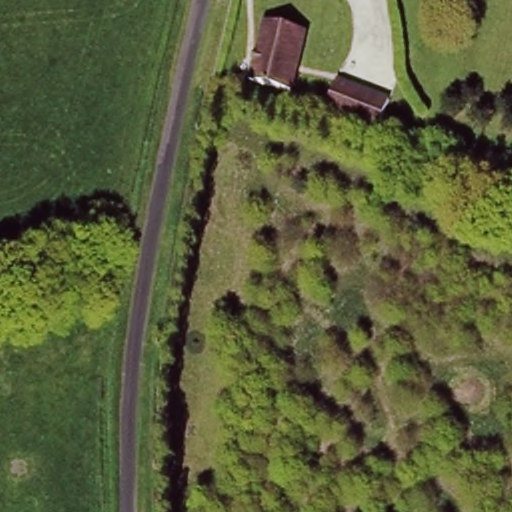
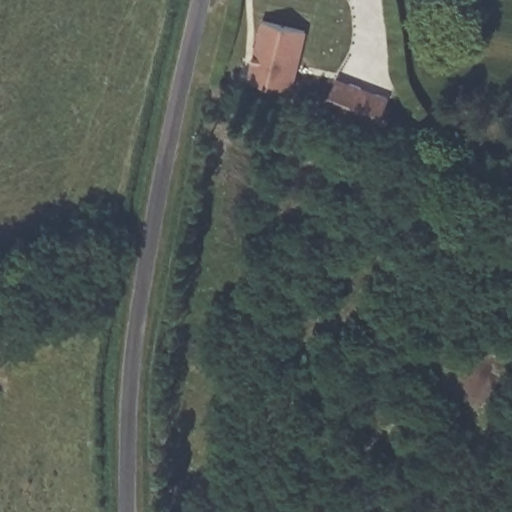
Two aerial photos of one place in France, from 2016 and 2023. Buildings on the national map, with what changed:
unchanged [(303,34),(290,89),(247,80),(262,24),(303,34)]
unchanged [(386,98),(375,130),(327,112),(338,81),(386,98)]

